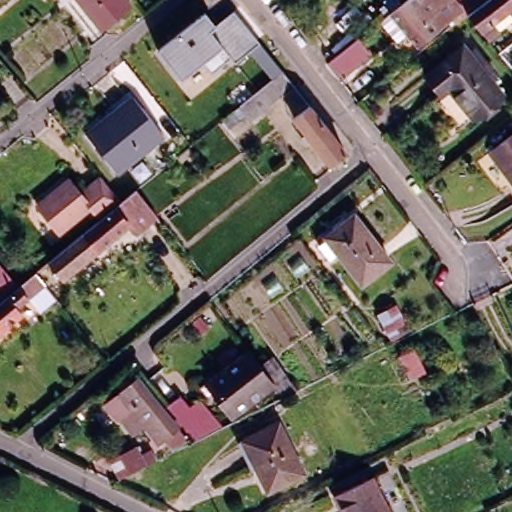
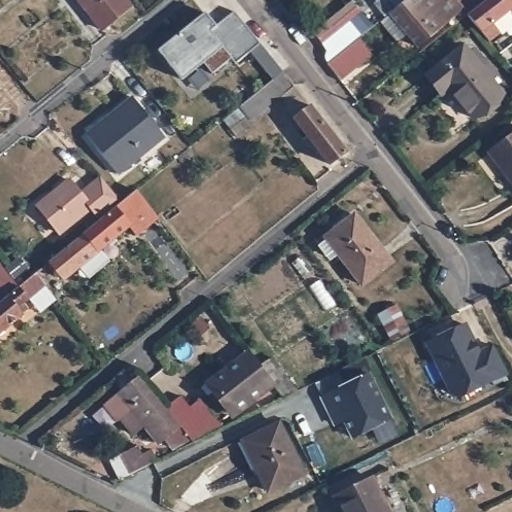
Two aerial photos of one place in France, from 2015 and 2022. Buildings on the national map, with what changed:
unchanged [(77,0),(124,0),(130,8),(100,31),(77,0)]
unchanged [(400,0),(512,0),(512,7),(495,20),(502,29),(492,37),(476,18),(470,10),(459,20),(455,16),(439,29),(422,43),(412,30),(402,39),(382,15),(392,7),(400,0)]
unchanged [(216,24),(234,11),(260,43),(236,63),(231,57),(212,72),(205,62),(183,80),(159,50),(206,13),(216,24)]
unchanged [(329,61),(366,29),(380,46),(368,57),(367,56),(342,77),(329,61)]
unchanged [(465,50),(505,98),(476,122),(452,93),(442,101),(427,81),(465,50)]
unchanged [(216,124),(229,114),(238,106),(265,85),(281,71),(308,106),(345,152),(329,165),(318,152),(295,122),(284,108),(287,106),(278,96),(248,120),(226,137),(216,124)]
unchanged [(91,136),(137,98),(170,138),(122,175),(91,136)]
unchanged [(512,131),(512,180),(489,149),(512,131)]
unchanged [(122,202),(100,219),(90,206),(82,214),(56,234),(35,207),(69,179),(79,193),(97,178),(122,202)]
unchanged [(135,236),(127,227),(65,277),(51,260),(100,219),(122,202),(135,191),(156,219),(135,236)]
unchanged [(324,239),(330,234),(329,232),(357,210),(394,258),(365,279),(340,246),(332,251),(324,239)]
unchanged [(0,301),(0,263),(19,285),(0,301)]
unchanged [(25,280),(40,268),(50,280),(60,294),(45,307),(34,294),(22,304),(27,310),(0,331),(0,301),(25,280)]
demolished [(391,306),(412,297),(426,324),(405,333),(391,306)]
new [(377,315),(398,305),(412,332),(392,342),(377,315)]
new [(464,325),(472,341),(470,342),(476,354),(492,346),(506,373),(454,400),(425,344),(464,325)]
demolished [(399,356),(413,349),(425,372),(409,379),(399,356)]
unchanged [(234,418),(212,389),(205,393),(200,387),(207,382),(235,362),(245,377),(248,375),(261,366),(277,386),(287,400),(272,407),(264,395),(234,418)]
unchanged [(170,443),(161,431),(155,435),(144,422),(132,432),(129,428),(116,412),(115,414),(104,400),(117,389),(110,379),(123,368),(132,378),(179,436),(170,443)]
new [(328,413),(320,397),(365,375),(388,419),(351,437),(342,419),(333,423),(328,413)]
unchanged [(188,442),(175,421),(162,404),(175,393),(185,405),(197,395),(211,413),(200,421),(194,427),(200,436),(188,442)]
unchanged [(304,476),(268,493),(257,467),(249,471),(237,444),(244,440),(280,424),(304,476)]
unchanged [(133,459),(143,455),(149,466),(113,484),(103,464),(129,452),(133,459)]
unchanged [(335,496),(372,477),(389,512),(343,512),(335,496)]

